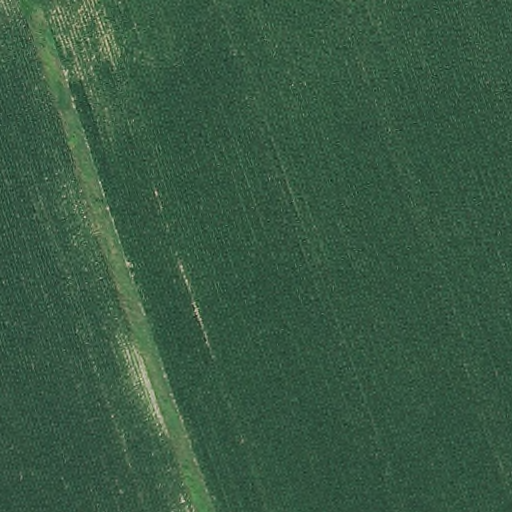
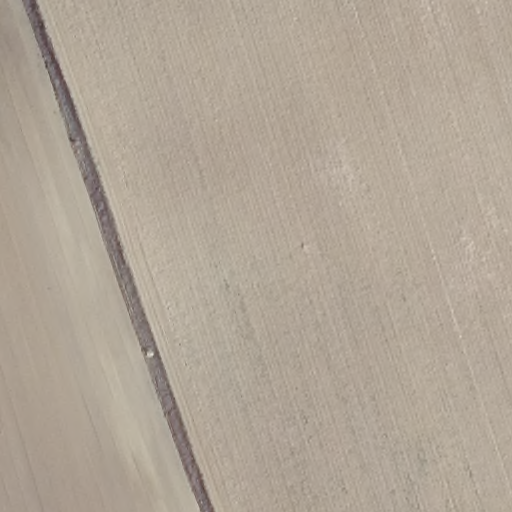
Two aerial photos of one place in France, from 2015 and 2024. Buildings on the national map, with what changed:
[]

